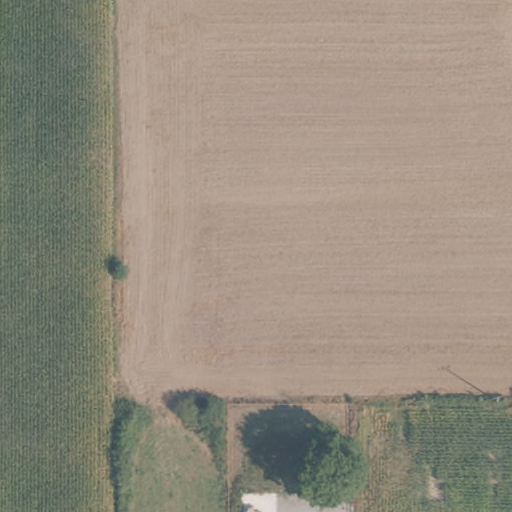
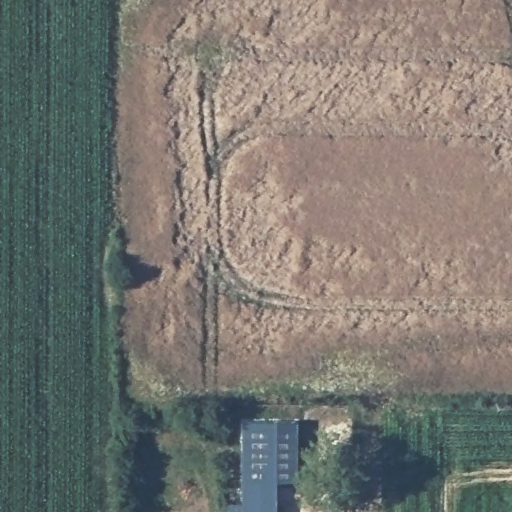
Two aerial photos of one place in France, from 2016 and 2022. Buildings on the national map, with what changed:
new [(297,420),(297,479),(276,479),(276,512),(228,512),(229,503),(241,503),(242,420),(297,420)]

